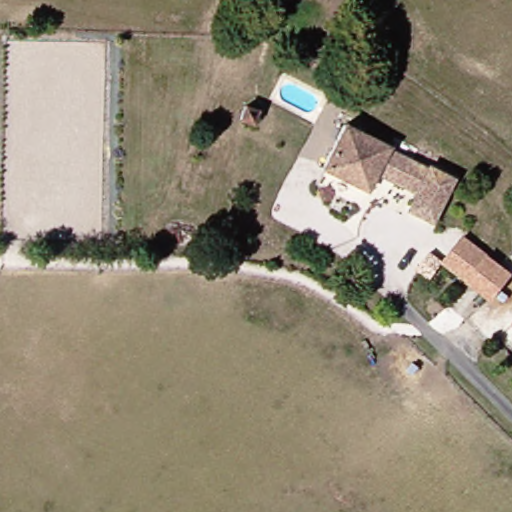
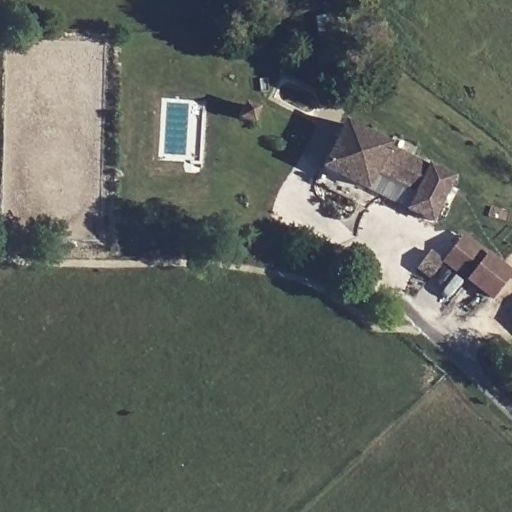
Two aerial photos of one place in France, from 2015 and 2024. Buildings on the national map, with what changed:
unchanged [(247,101),(262,107),(255,121),(241,115),(247,101)]
unchanged [(405,207),(413,190),(372,171),(364,187),(320,167),(341,122),(386,144),(384,146),(425,166),(426,163),(451,175),(430,219),(405,207)]
unchanged [(499,295),(452,258),(470,236),(512,270),(512,279),(499,295)]
unchanged [(429,247),(441,257),(428,272),(416,262),(429,247)]

